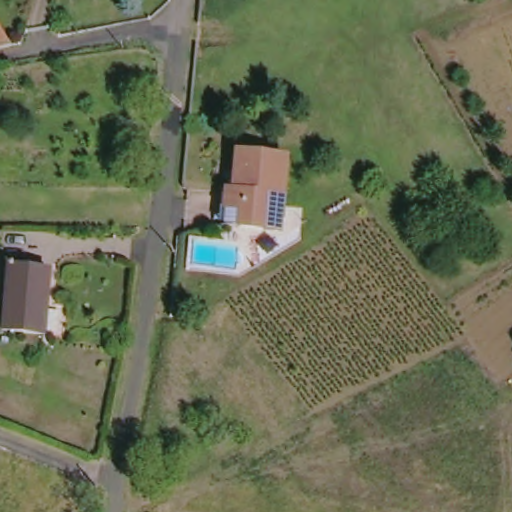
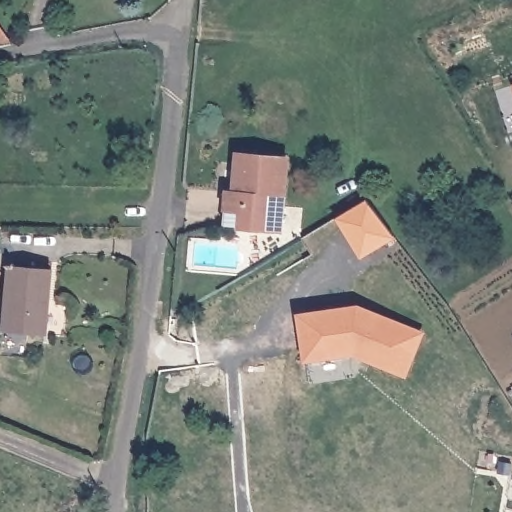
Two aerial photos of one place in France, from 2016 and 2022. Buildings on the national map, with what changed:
unchanged [(227,227),(232,154),(280,157),(275,229),(227,227)]
new [(340,216),(368,199),(393,235),(362,254),(340,216)]
unchanged [(36,335),(0,330),(0,296),(4,267),(45,272),(36,335)]
new [(297,314),(360,305),(425,332),(405,377),(352,356),(304,363),(297,314)]

